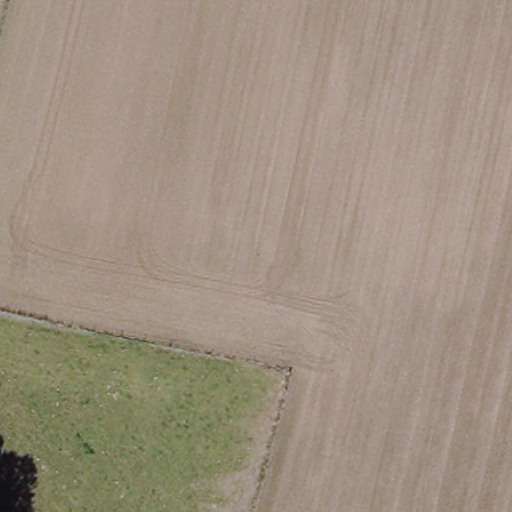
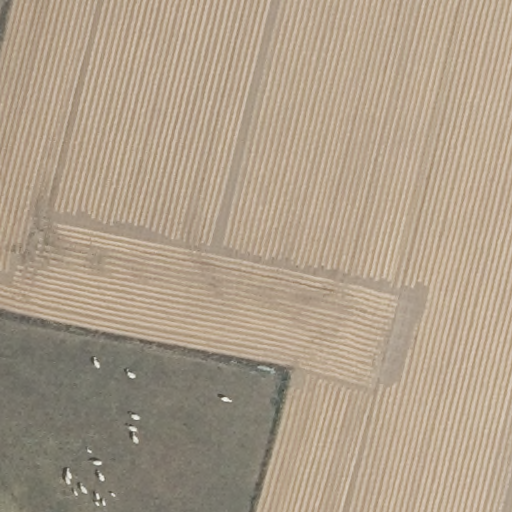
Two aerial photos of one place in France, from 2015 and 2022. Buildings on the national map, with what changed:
[]

